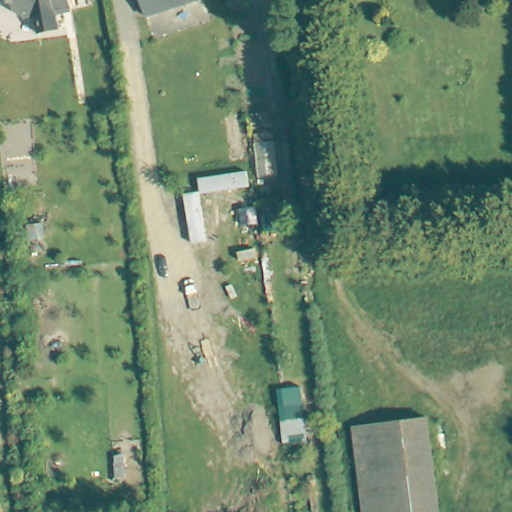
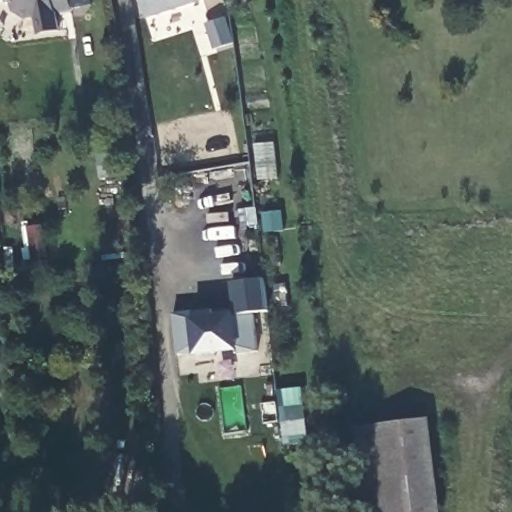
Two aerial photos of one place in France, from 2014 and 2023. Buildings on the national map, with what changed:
unchanged [(38,28),(36,13),(27,14),(14,5),(13,0),(71,0),(72,5),(56,9),(55,9),(58,24),(38,28)]
unchanged [(145,21),(138,0),(201,0),(202,3),(145,21)]
unchanged [(227,0),(238,0),(239,4),(228,5),(227,0)]
new [(268,312),(255,313),(258,352),(238,354),(237,349),(195,354),(195,352),(177,354),(172,313),(194,310),(195,314),(234,310),(232,280),(263,277),(268,312)]
unchanged [(439,512),(364,512),(355,432),(429,423),(439,512)]

